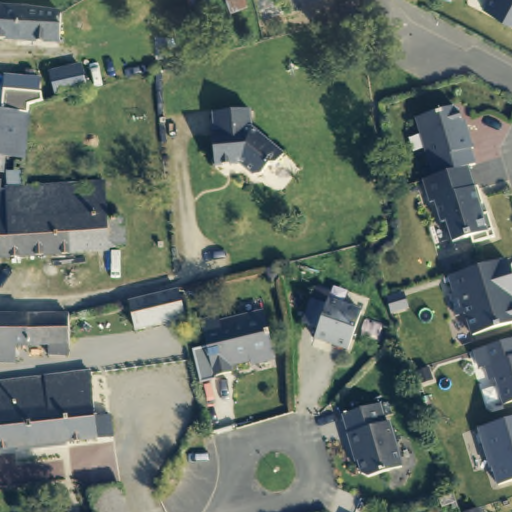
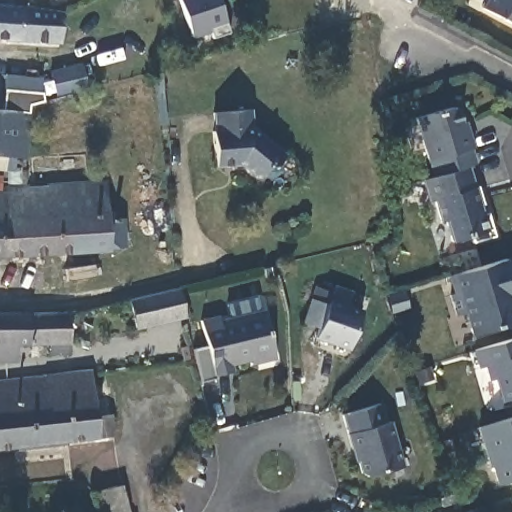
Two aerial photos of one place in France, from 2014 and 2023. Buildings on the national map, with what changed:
new [(211,33),(195,39),(179,0),(220,0),(231,33),(214,40),(211,33)]
new [(405,0),(409,0),(408,1),(405,0)]
unchanged [(488,0),(512,0),(512,17),(486,4),(488,0)]
unchanged [(20,6),(19,38),(0,37),(0,5),(20,6)]
unchanged [(20,6),(46,11),(60,11),(59,40),(19,38),(20,6)]
unchanged [(86,86),(57,96),(50,73),(79,64),(86,86)]
unchanged [(2,114),(4,92),(42,95),(44,105),(28,110),(28,116),(22,160),(0,158),(0,113),(2,114)]
unchanged [(458,106),(464,126),(468,129),(473,144),(470,145),(475,160),(467,163),(433,173),(416,114),(453,103),(458,106)]
unchanged [(214,130),(213,111),(250,109),(251,128),(284,155),(275,165),(268,165),(259,175),(252,175),(239,164),(214,165),(212,130),(214,130)]
unchanged [(429,174),(433,173),(467,163),(473,184),(477,183),(482,201),(479,202),(482,211),(487,209),(494,233),(472,239),(470,233),(452,238),(445,217),(441,218),(434,197),(429,198),(423,176),(429,174)]
unchanged [(5,217),(4,191),(4,186),(23,185),(98,181),(103,181),(105,213),(93,213),(80,214),(81,250),(0,253),(0,217),(5,217)]
unchanged [(4,191),(5,217),(0,217),(0,191),(4,191)]
unchanged [(80,214),(93,213),(105,213),(106,217),(122,217),(123,246),(107,246),(107,250),(81,250),(80,214)]
unchanged [(512,293),(510,294),(512,300),(512,320),(471,333),(464,311),(455,314),(448,294),(453,292),(448,275),(460,271),(504,257),(512,283),(512,293)]
unchanged [(414,297),(400,301),(395,287),(410,282),(414,297)]
unchanged [(180,287),(187,317),(137,329),(130,298),(180,287)]
unchanged [(313,290),(328,295),(326,303),(350,312),(359,315),(345,352),(312,340),(315,331),(300,326),(302,322),(309,302),(313,290)]
unchanged [(272,356),(255,359),(254,355),(227,362),(229,369),(211,373),(203,337),(199,319),(216,315),(217,320),(262,309),(265,324),(272,356)]
unchanged [(50,352),(50,341),(48,341),(14,342),(14,361),(0,360),(0,312),(27,312),(34,312),(67,312),(68,342),(68,352),(50,352)]
unchanged [(500,369),(495,371),(491,357),(485,359),(479,341),(497,336),(512,331),(512,394),(508,395),(500,369)]
unchanged [(42,376),(88,372),(94,416),(108,415),(111,434),(0,447),(0,381),(42,376)]
unchanged [(383,406),(389,426),(392,425),(403,470),(374,477),(369,479),(362,476),(357,453),(354,453),(345,417),(383,406)]
unchanged [(487,461),(485,461),(474,422),(512,410),(512,473),(493,479),(487,461)]
unchanged [(93,490),(123,484),(129,512),(99,512),(93,490)]

